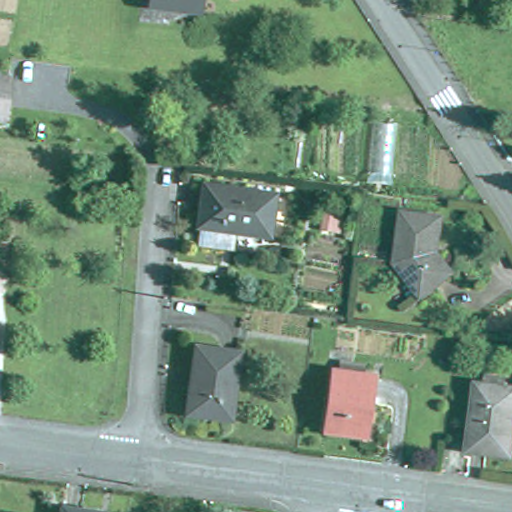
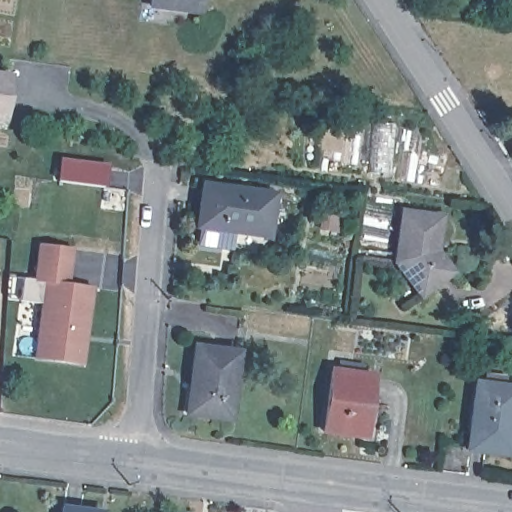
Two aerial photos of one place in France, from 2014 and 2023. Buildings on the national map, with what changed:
unchanged [(150,5),(151,0),(196,0),(195,10),(150,5)]
unchanged [(10,72),(3,120),(0,119),(0,71),(10,72)]
new [(62,161),(107,166),(105,186),(60,180),(62,161)]
unchanged [(201,244),(204,223),(210,184),(280,194),(274,234),(240,229),(238,249),(201,244)]
unchanged [(431,244),(447,267),(418,290),(392,255),(398,206),(435,211),(431,244)]
new [(72,249),(68,283),(94,286),(84,365),(34,358),(43,282),(33,281),(38,244),(72,249)]
unchanged [(230,417),(192,412),(196,384),(192,383),(197,345),(240,350),(230,417)]
unchanged [(370,407),(367,407),(363,435),(325,430),(333,367),(375,372),(370,407)]
unchanged [(512,422),(512,450),(512,454),(470,448),(479,380),(512,385),(512,418),(512,421),(512,422)]
unchanged [(64,506),(103,512),(63,512),(64,506)]

